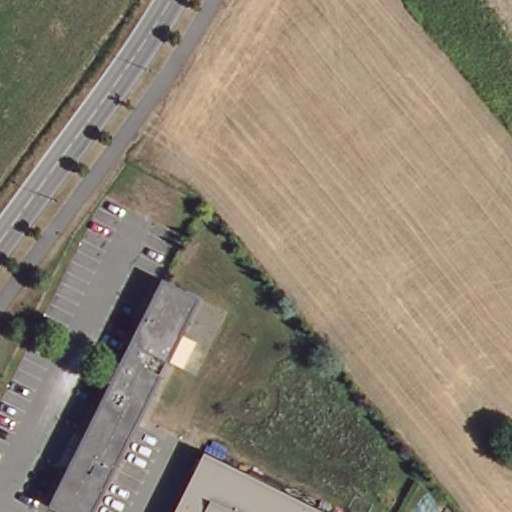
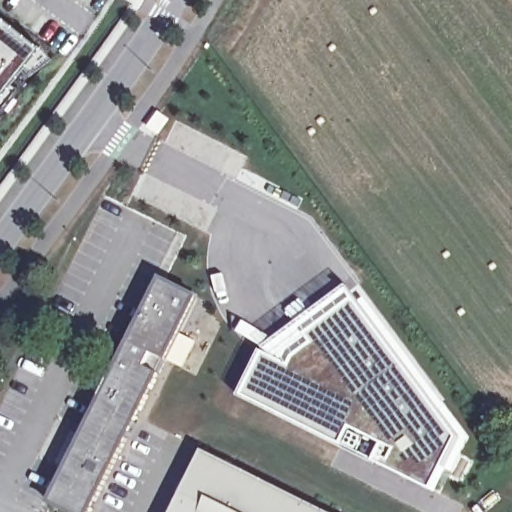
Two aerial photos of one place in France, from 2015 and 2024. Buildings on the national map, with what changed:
new [(12,85),(17,92),(2,114),(0,112),(0,19),(37,50),(12,85)]
unchanged [(177,326),(164,351),(172,355),(93,512),(83,512),(57,498),(153,308),(157,300),(169,277),(195,290),(177,326)]
new [(434,488),(244,394),(265,352),(294,367),(315,342),(310,335),(355,301),(460,440),(434,488)]
unchanged [(324,512),(185,512),(214,456),(270,485),(324,512)]

